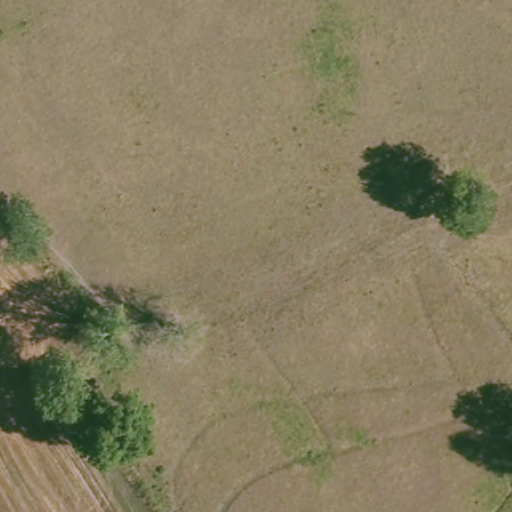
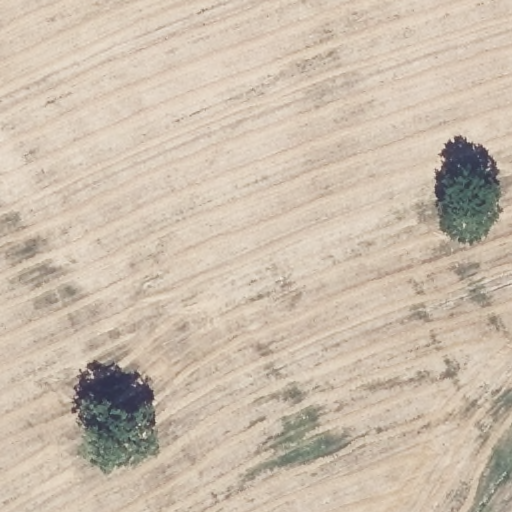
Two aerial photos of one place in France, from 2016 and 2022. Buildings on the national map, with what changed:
[]

